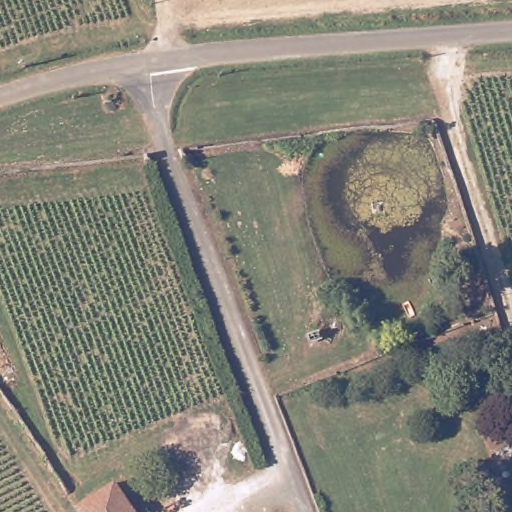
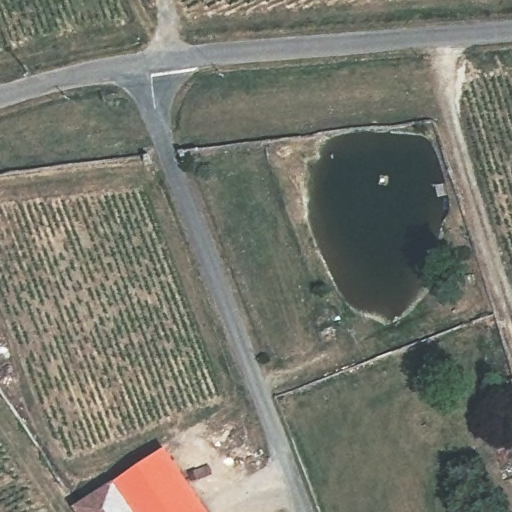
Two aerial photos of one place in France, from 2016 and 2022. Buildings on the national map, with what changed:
new [(120,479),(166,449),(209,512),(143,512),(139,506),(120,479)]
new [(88,512),(82,503),(120,479),(139,506),(128,512),(88,512)]
unchanged [(143,512),(128,512),(139,506),(143,512)]

